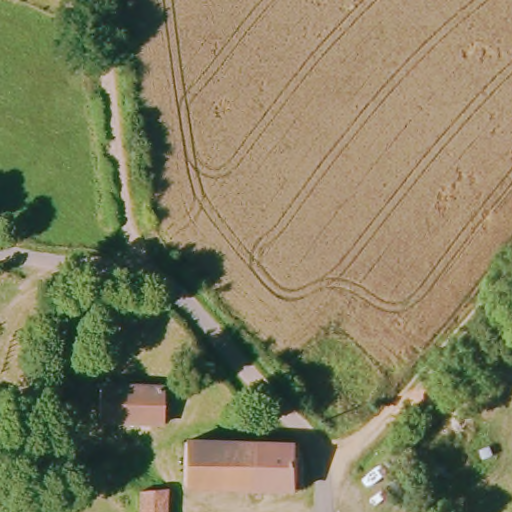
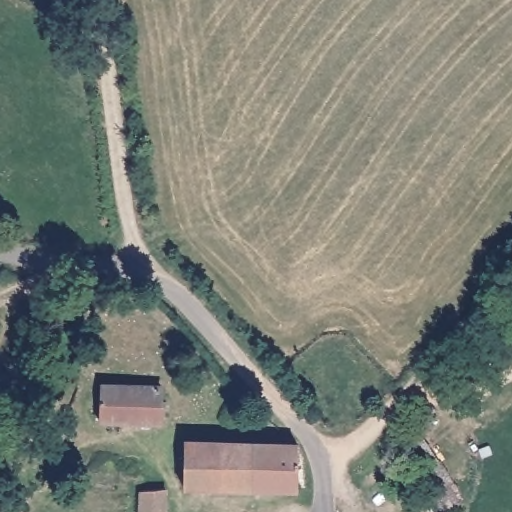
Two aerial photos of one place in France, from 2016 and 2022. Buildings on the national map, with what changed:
unchanged [(163,427),(99,424),(101,386),(163,389),(163,427)]
unchanged [(188,438),(225,441),(224,482),(186,482),(188,438)]
unchanged [(224,482),(225,441),(259,443),(260,483),(224,482)]
unchanged [(302,488),(260,483),(259,443),(303,448),(302,488)]
unchanged [(165,512),(140,512),(140,487),(165,487),(165,512)]

